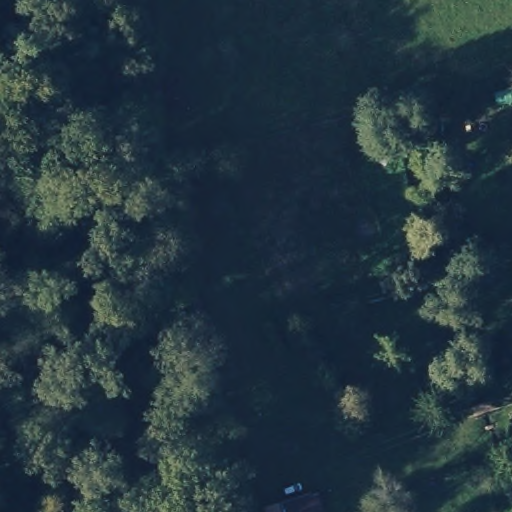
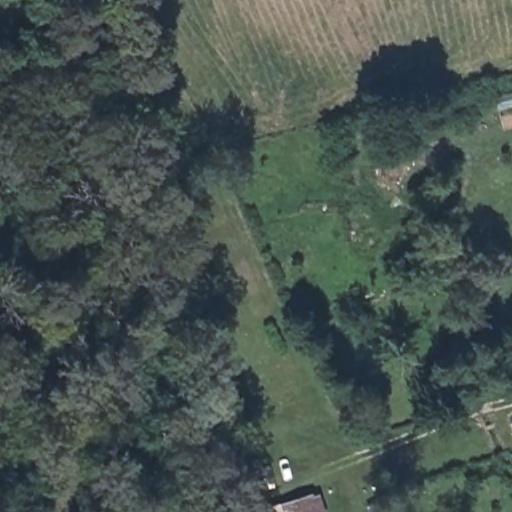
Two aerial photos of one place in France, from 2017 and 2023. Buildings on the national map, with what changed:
unchanged [(267,512),(266,510),(309,498),(313,512),(267,512)]

